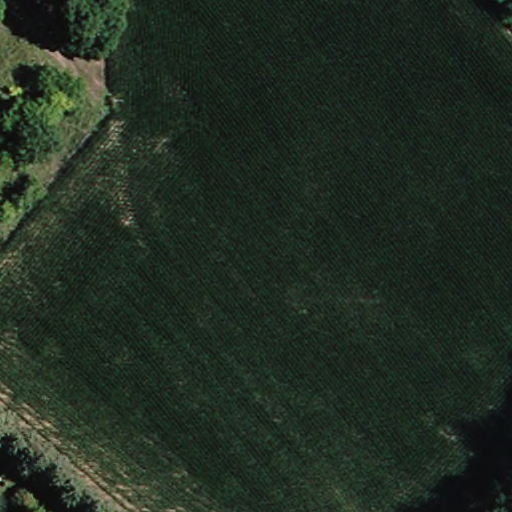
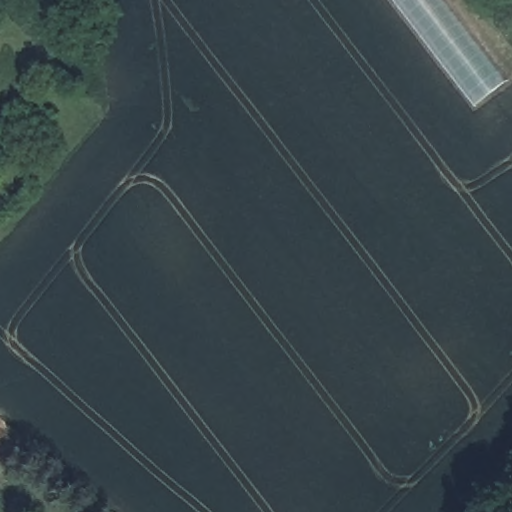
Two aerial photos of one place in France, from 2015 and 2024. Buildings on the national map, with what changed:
new [(472,106),(392,0),(448,0),(508,81),(472,106)]

